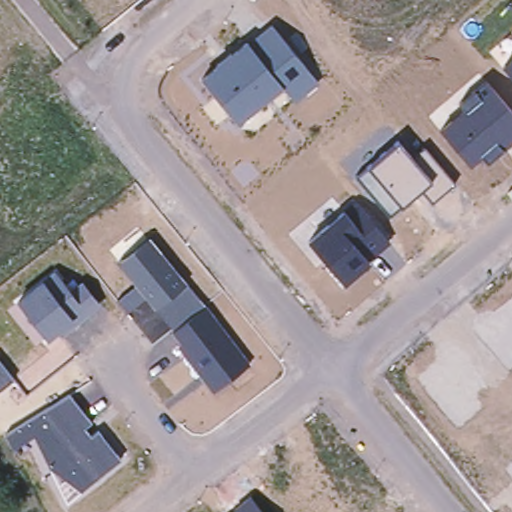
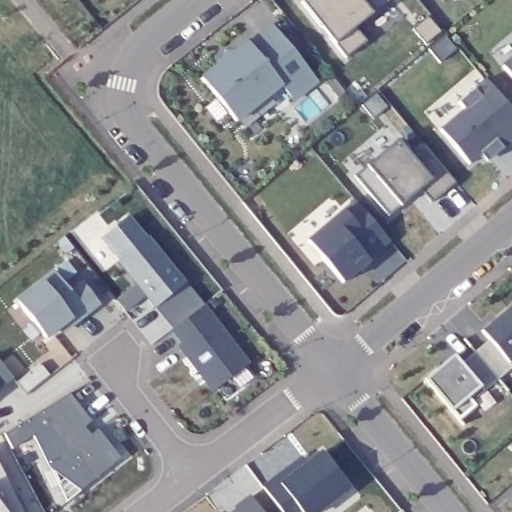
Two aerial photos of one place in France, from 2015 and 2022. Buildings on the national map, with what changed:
new [(365,41),(347,58),(302,1),(304,0),(390,0),(356,29),(365,41)]
unchanged [(322,81),(297,103),(282,86),(237,125),(198,76),(272,21),(322,81)]
unchanged [(512,55),(512,81),(499,66),(512,55)]
unchanged [(512,143),(487,163),(480,155),(468,165),(438,128),(464,106),(459,100),(486,77),(512,107),(512,143)]
unchanged [(455,184),(433,203),(420,189),(403,203),(390,215),(357,175),(400,140),(411,155),(425,144),(455,184)]
unchanged [(381,224),(378,226),(390,240),(369,258),(371,260),(344,283),(306,239),(322,225),(318,220),(355,191),(381,224)]
unchanged [(252,360),(215,390),(179,345),(182,341),(146,297),(127,311),(116,298),(135,282),(117,261),(150,235),(252,360)]
unchanged [(74,285),(82,278),(101,303),(65,334),(60,330),(46,341),(13,301),(58,266),(74,285)]
new [(427,378),(455,355),(462,364),(490,340),(481,330),(512,303),(512,359),(507,363),(512,367),(483,392),(479,387),(468,397),(477,406),(460,417),(452,410),(427,378)]
unchanged [(16,380),(0,392),(0,355),(16,380)]
unchanged [(94,422),(85,427),(92,435),(99,429),(122,460),(80,493),(49,469),(35,434),(14,449),(5,432),(69,393),(94,422)]
new [(265,489),(322,447),(327,454),(353,488),(320,512),(282,512),(265,489)]
new [(27,512),(0,512),(0,460),(27,512)]
unchanged [(267,512),(227,512),(254,493),(267,512)]

